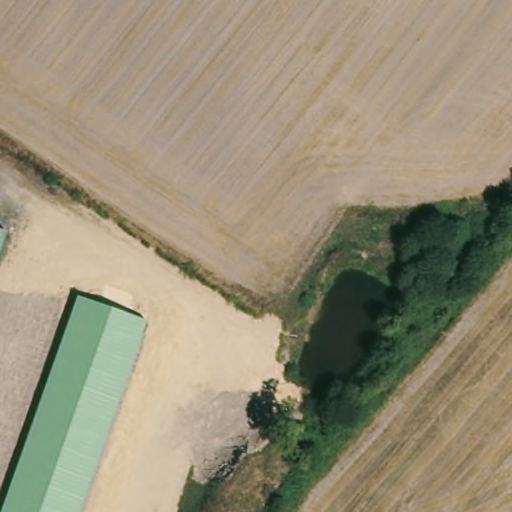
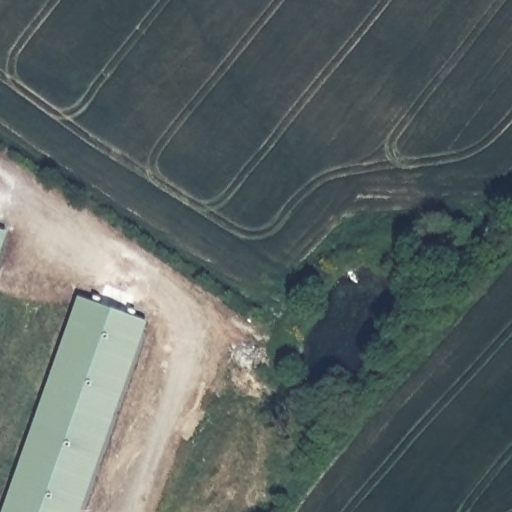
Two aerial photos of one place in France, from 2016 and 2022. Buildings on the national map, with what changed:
unchanged [(0,252),(0,228),(8,230),(0,252)]
unchanged [(2,512),(78,297),(146,322),(79,512),(2,512)]

